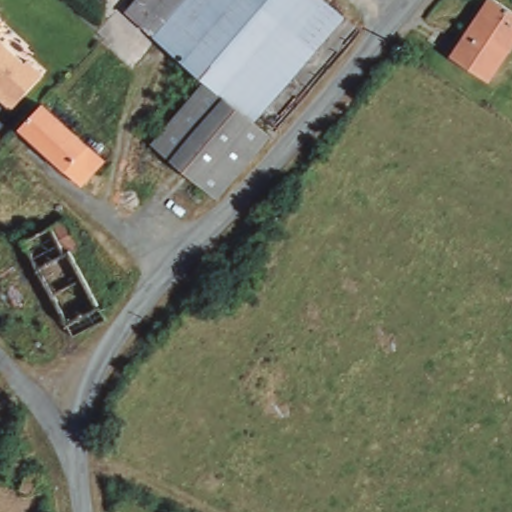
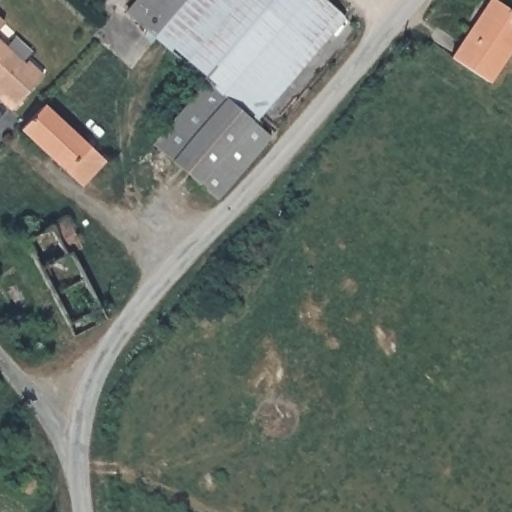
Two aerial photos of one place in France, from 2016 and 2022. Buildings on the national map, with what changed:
unchanged [(344,16),(253,122),(206,81),(126,13),(138,0),(325,0),(344,16)]
unchanged [(451,58),(490,0),(495,0),(512,12),(512,45),(487,82),(451,58)]
unchanged [(19,58),(22,55),(38,70),(6,105),(0,99),(0,41),(19,58)]
unchanged [(270,137),(216,199),(152,144),(206,81),(253,122),(270,137)]
unchanged [(104,161),(81,185),(20,129),(42,105),(104,161)]
unchanged [(81,247),(71,253),(85,278),(51,295),(23,241),(66,219),(81,247)]
unchanged [(106,319),(74,336),(51,295),(85,278),(106,319)]
unchanged [(32,495),(20,490),(25,477),(37,483),(32,495)]

